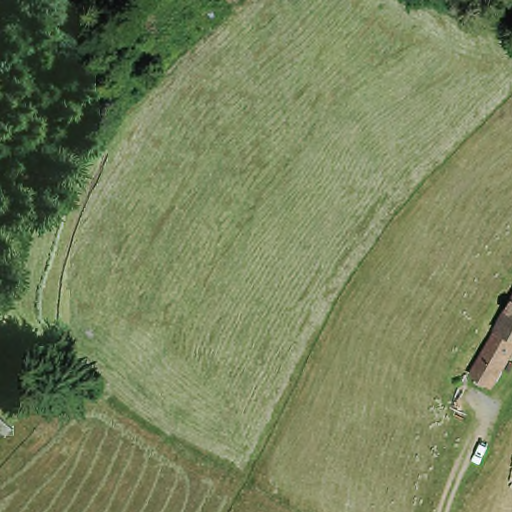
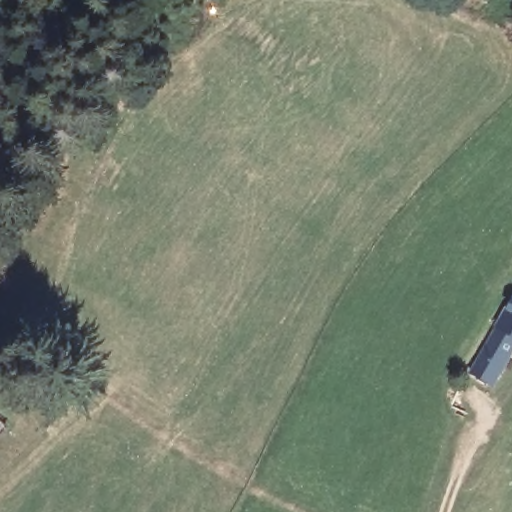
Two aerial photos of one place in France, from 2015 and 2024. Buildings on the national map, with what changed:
unchanged [(512,360),(503,378),(482,367),(497,336),(506,318),(512,307),(512,360)]

